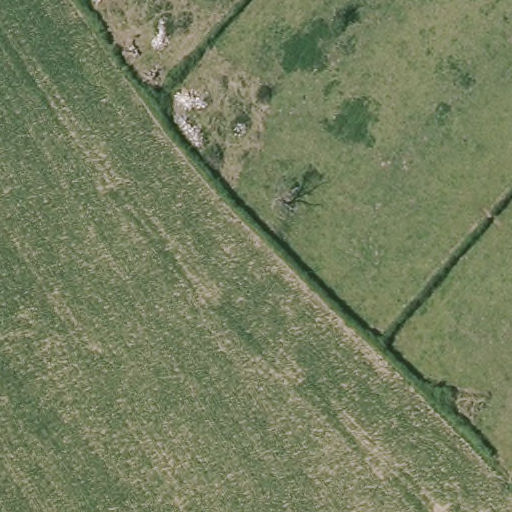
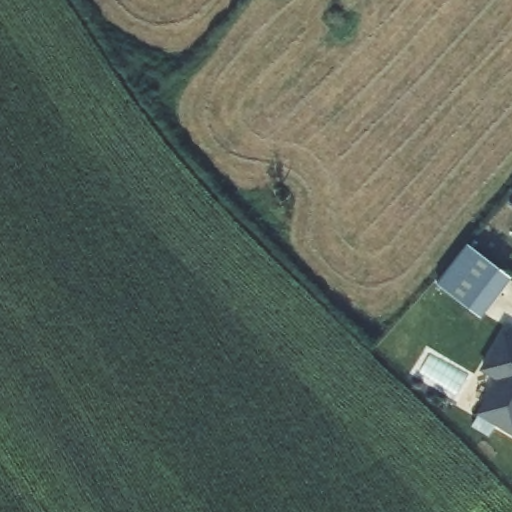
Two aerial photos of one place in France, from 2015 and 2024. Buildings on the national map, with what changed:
new [(507,286),(482,318),(437,285),(469,244),(510,275),(507,286)]
new [(499,380),(482,370),(505,332),(512,337),(512,433),(479,414),(499,380)]

